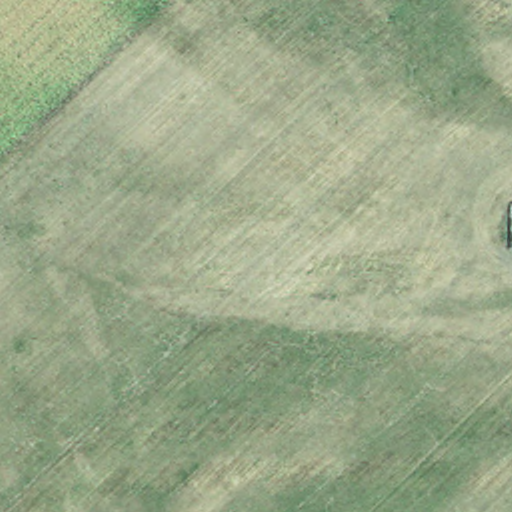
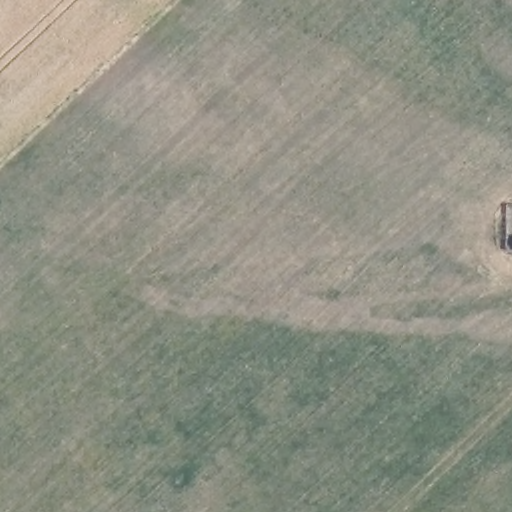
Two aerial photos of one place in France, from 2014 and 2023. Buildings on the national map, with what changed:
[]

